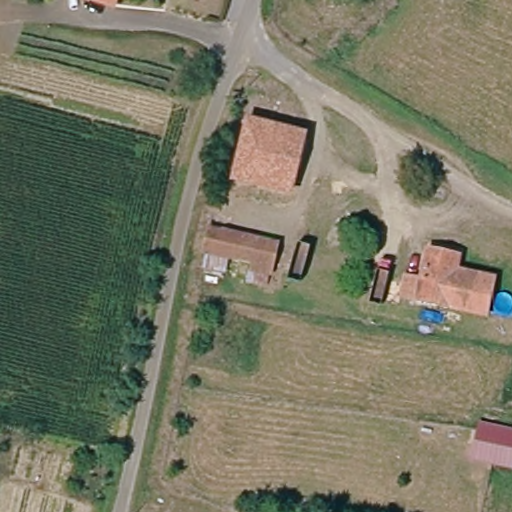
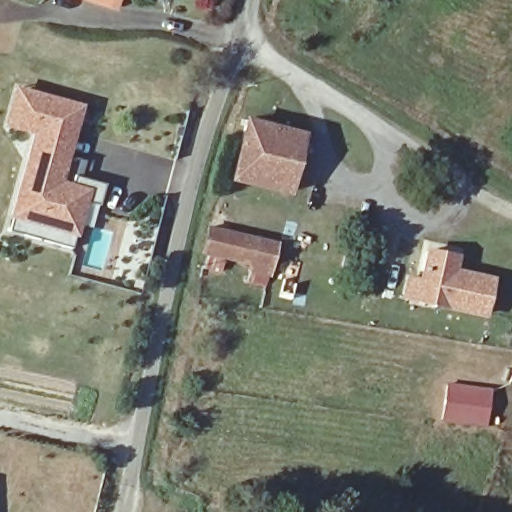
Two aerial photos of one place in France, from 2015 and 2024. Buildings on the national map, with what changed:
unchanged [(73,0),(98,0),(96,6),(73,0)]
unchanged [(96,6),(98,0),(123,0),(120,12),(96,6)]
new [(84,106),(64,181),(75,184),(76,177),(104,186),(91,229),(81,226),(78,237),(74,237),(71,247),(10,230),(13,220),(7,218),(30,135),(4,128),(14,86),(84,106)]
unchanged [(295,197),(240,187),(251,128),(305,138),(295,197)]
unchanged [(280,277),(210,265),(214,241),(285,255),(280,277)]
unchanged [(408,269),(427,272),(430,257),(461,262),(459,277),(469,279),(462,315),(422,307),(403,303),(408,269)]
unchanged [(496,283),(491,321),(462,315),(469,279),(496,283)]
new [(308,394),(315,350),(355,355),(347,400),(308,394)]
new [(447,382),(493,388),(487,427),(442,421),(447,382)]

